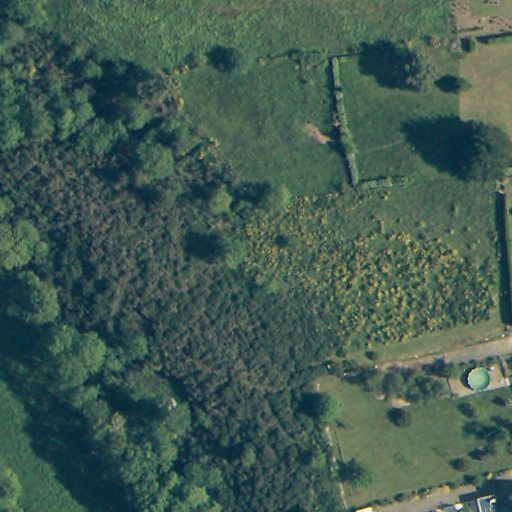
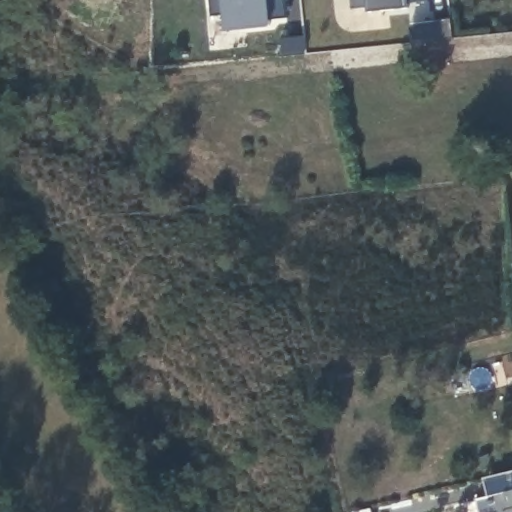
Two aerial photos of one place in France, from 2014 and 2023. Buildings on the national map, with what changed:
new [(270,27),(224,31),(222,15),(210,15),(209,0),(286,0),(287,19),(270,20),(270,27)]
new [(407,2),(408,9),(369,12),(369,7),(353,8),(352,0),(428,0),(428,1),(407,2)]
new [(452,21),(454,41),(427,45),(412,46),(410,26),(430,24),(452,21)]
unchanged [(506,510),(500,512),(482,512),(479,501),(512,493),(512,512),(507,512),(506,510)]

